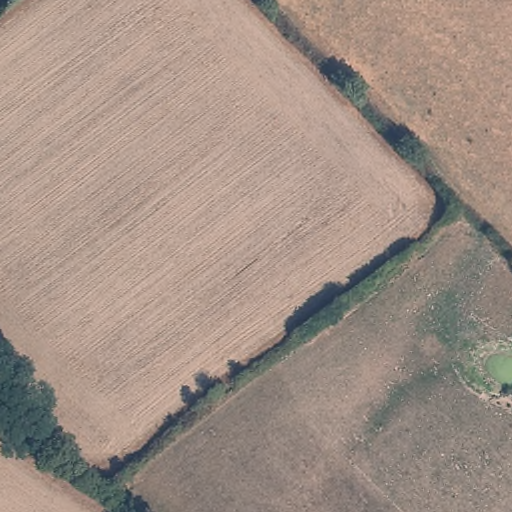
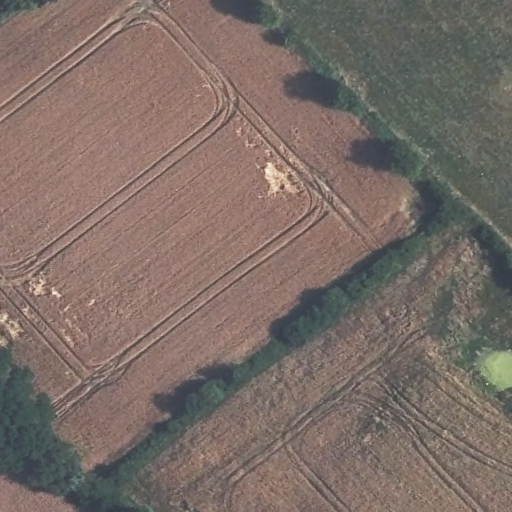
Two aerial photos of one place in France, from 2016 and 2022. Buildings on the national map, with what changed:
[]

